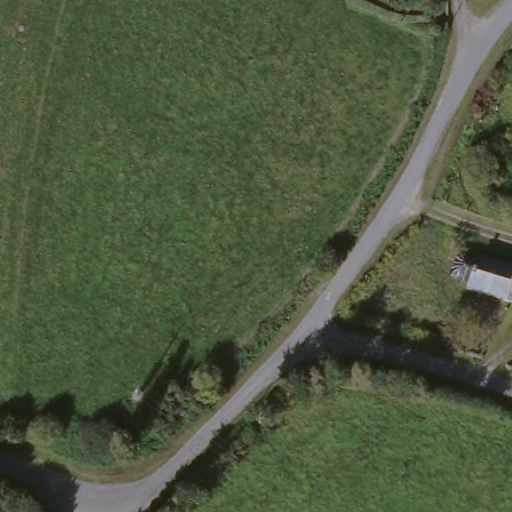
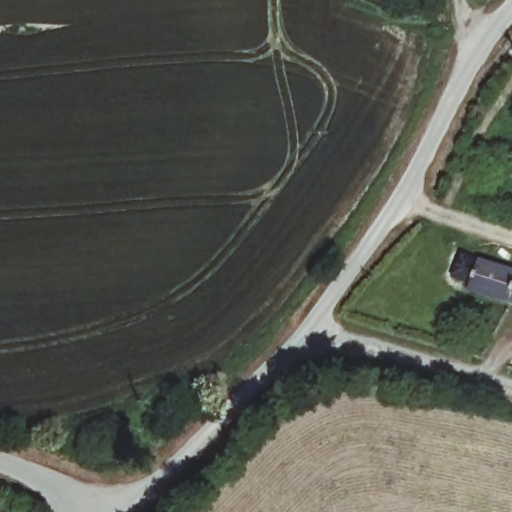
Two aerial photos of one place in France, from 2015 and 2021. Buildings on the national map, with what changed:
unchanged [(473,290),(474,281),(460,278),(467,254),(512,268),(512,298),(511,302),(473,290)]
unchanged [(512,298),(512,302),(511,302),(512,298)]

